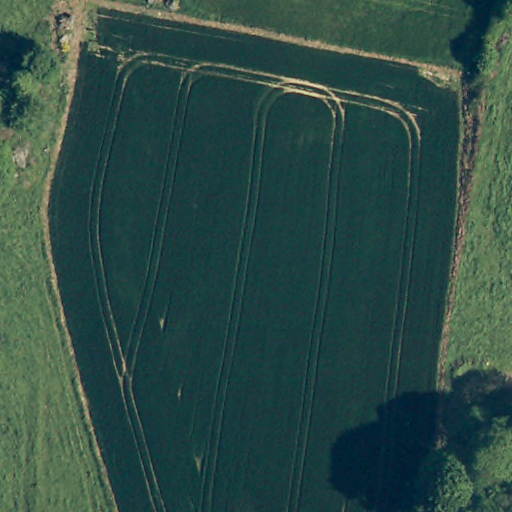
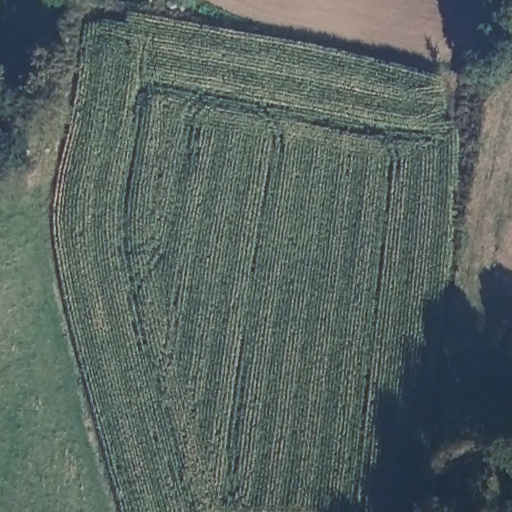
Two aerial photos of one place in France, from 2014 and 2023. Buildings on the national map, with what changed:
[]

